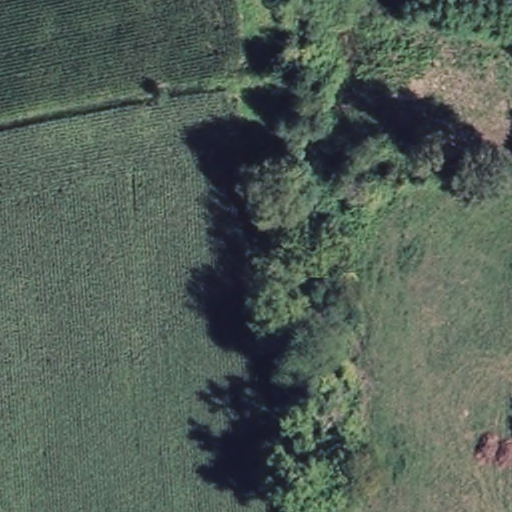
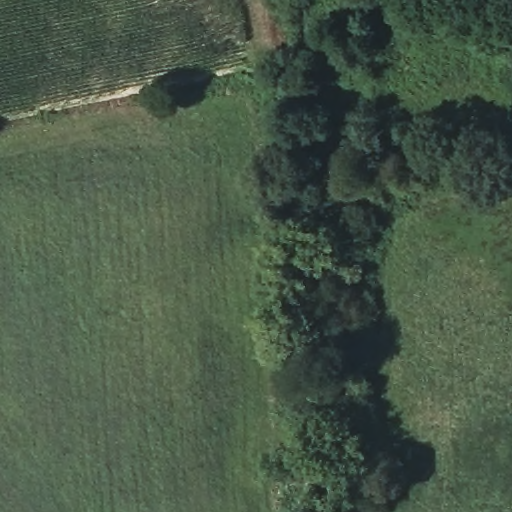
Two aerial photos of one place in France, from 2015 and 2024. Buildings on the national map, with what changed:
[]

